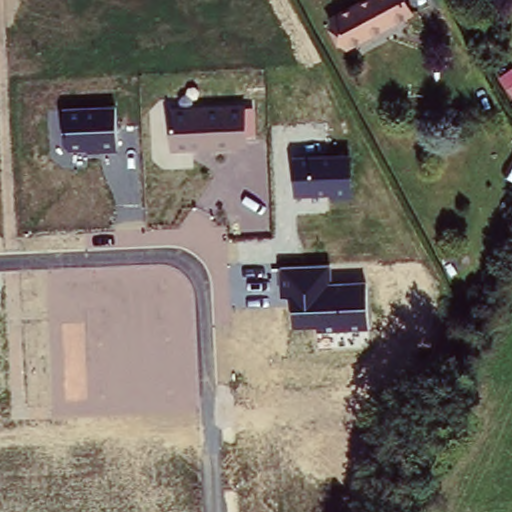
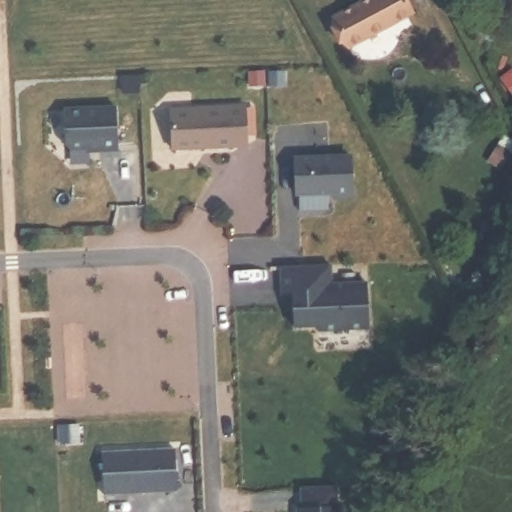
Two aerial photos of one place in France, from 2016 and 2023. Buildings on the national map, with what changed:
unchanged [(363,0),(403,0),(408,10),(346,42),(330,17),(363,0)]
unchanged [(169,106),(245,102),(245,109),(254,109),(255,137),(246,138),(246,148),(171,150),(169,106)]
unchanged [(63,107),(117,106),(118,149),(64,149),(63,107)]
unchanged [(293,155),(352,154),(353,197),(329,199),(329,195),(294,195),(293,155)]
unchanged [(293,296),(280,296),(280,266),(331,264),(332,282),(367,283),(369,328),(315,332),(315,327),(293,327),(293,296)]
new [(173,446),(175,490),(103,494),(100,451),(173,446)]
new [(336,502),(339,502),(340,512),(296,512),(296,504),(301,504),(301,484),(336,482),(336,502)]

